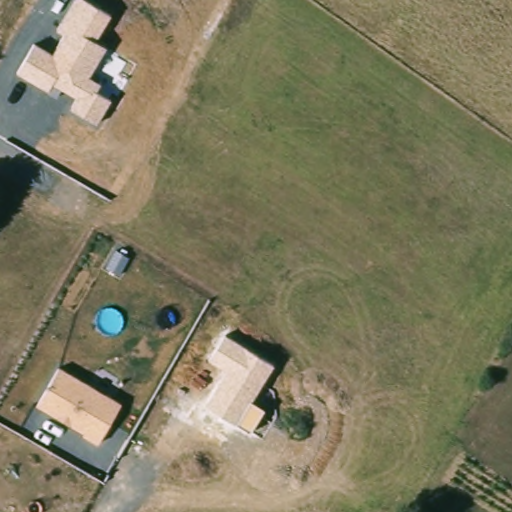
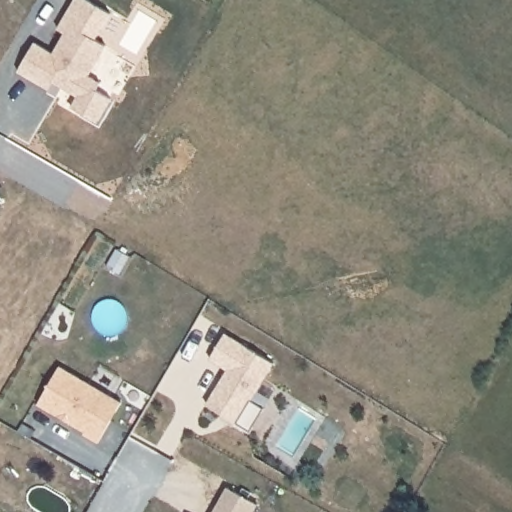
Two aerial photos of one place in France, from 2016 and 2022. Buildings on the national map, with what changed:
unchanged [(99,124),(71,108),(77,99),(53,85),(49,92),(17,73),(34,43),(54,55),(65,35),(57,30),(74,0),(86,0),(111,15),(96,41),(106,46),(89,77),(101,85),(95,94),(110,101),(99,124)]
unchanged [(252,402),(263,410),(250,432),(205,405),(225,369),(209,359),(225,333),(274,364),(252,402)]
unchanged [(99,441),(39,406),(60,367),(121,402),(99,441)]
new [(258,506),(255,512),(213,512),(226,488),(258,506)]

